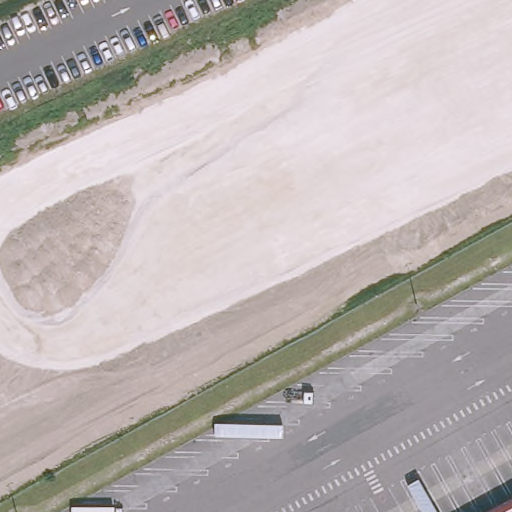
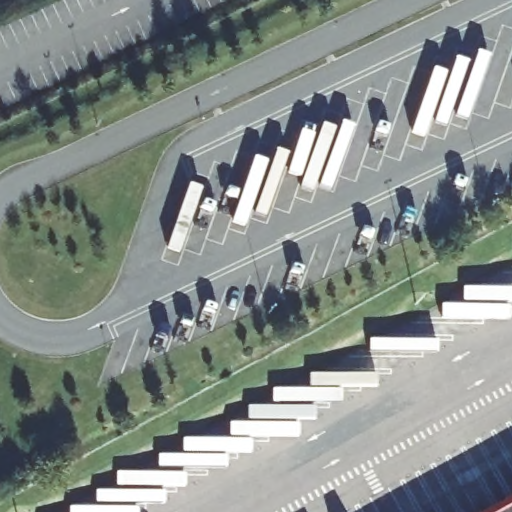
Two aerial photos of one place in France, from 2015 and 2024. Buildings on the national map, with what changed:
unchanged [(497,512),(512,504),(512,512),(497,512)]

